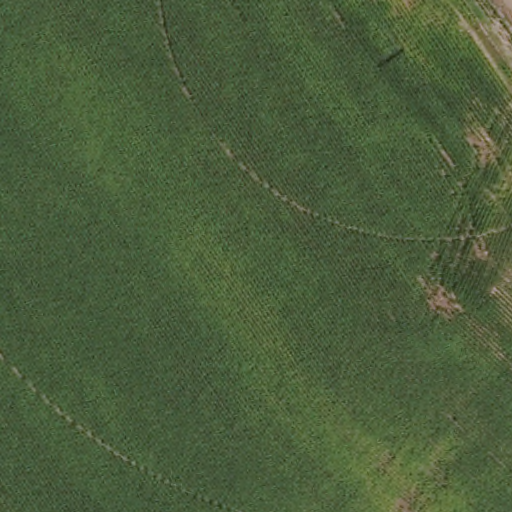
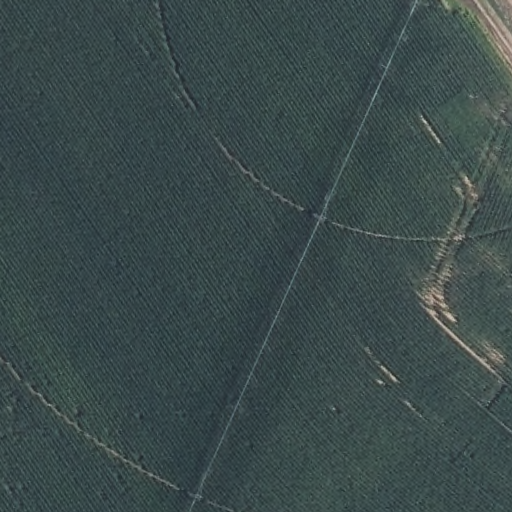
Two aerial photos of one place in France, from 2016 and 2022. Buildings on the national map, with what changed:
[]

